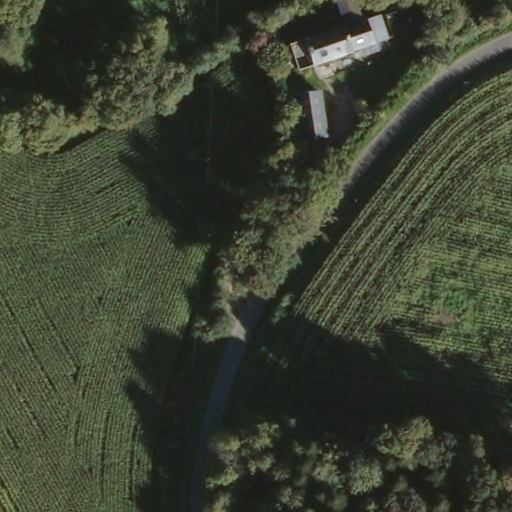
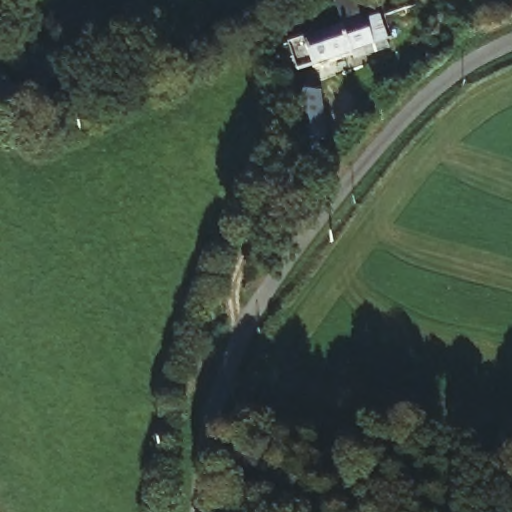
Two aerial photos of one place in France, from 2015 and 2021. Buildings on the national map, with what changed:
unchanged [(305,73),(295,70),(290,50),(293,39),(346,21),(354,22),(382,15),(389,46),(305,73)]
unchanged [(333,135),(306,143),(290,97),(316,88),(333,135)]

